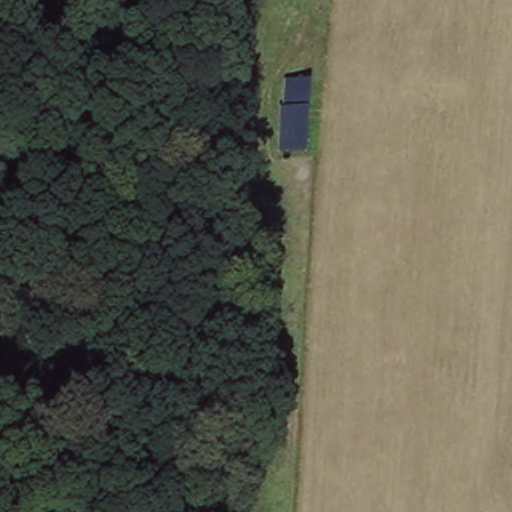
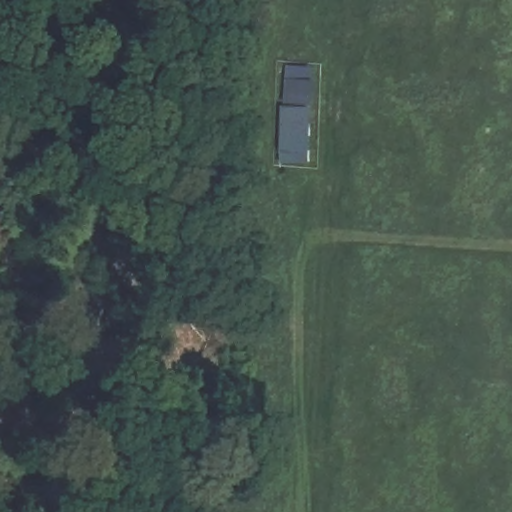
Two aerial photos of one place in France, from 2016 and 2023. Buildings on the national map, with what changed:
unchanged [(309,102),(280,101),(281,75),(310,77),(309,102)]
unchanged [(308,153),(277,153),(278,106),(310,108),(308,153)]

